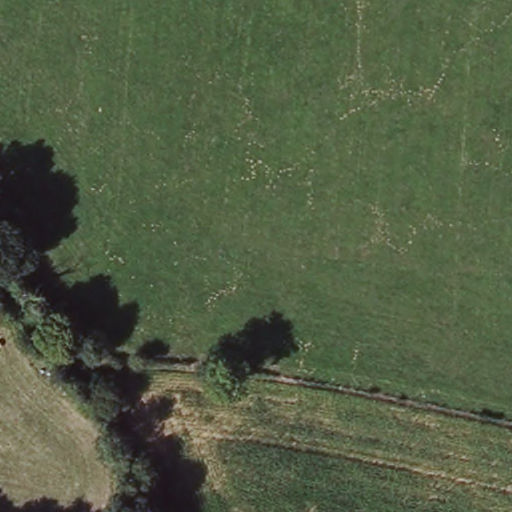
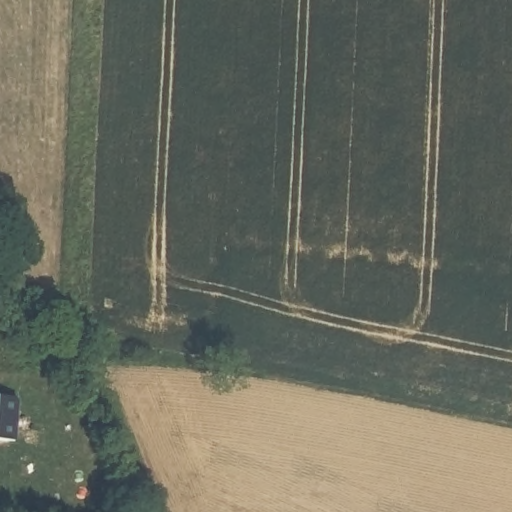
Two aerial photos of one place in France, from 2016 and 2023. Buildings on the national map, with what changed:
new [(15,440),(0,439),(0,397),(18,398),(15,440)]

